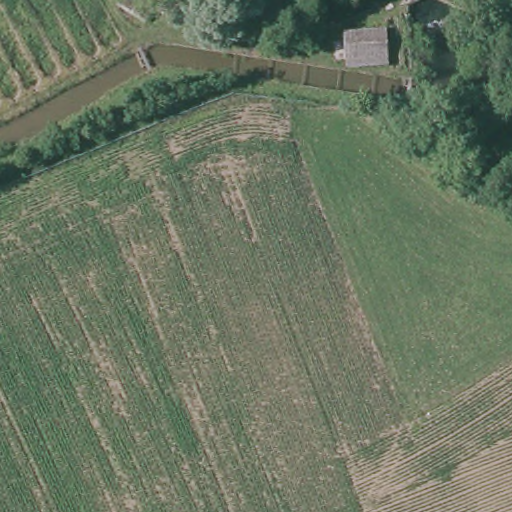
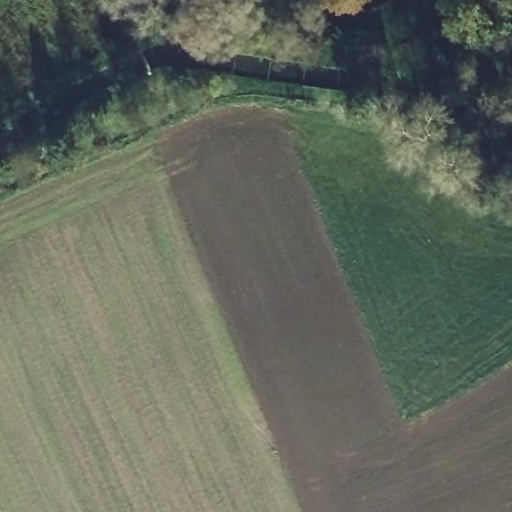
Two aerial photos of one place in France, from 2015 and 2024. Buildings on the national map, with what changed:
unchanged [(137,0),(155,22),(135,32),(110,2),(114,0),(137,0)]
unchanged [(387,59),(344,64),(343,43),(383,37),(387,59)]

